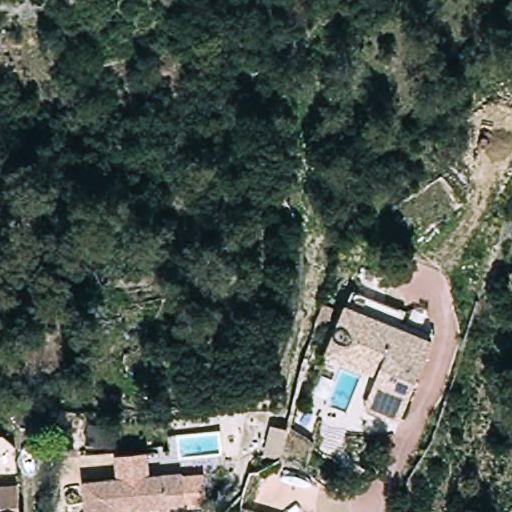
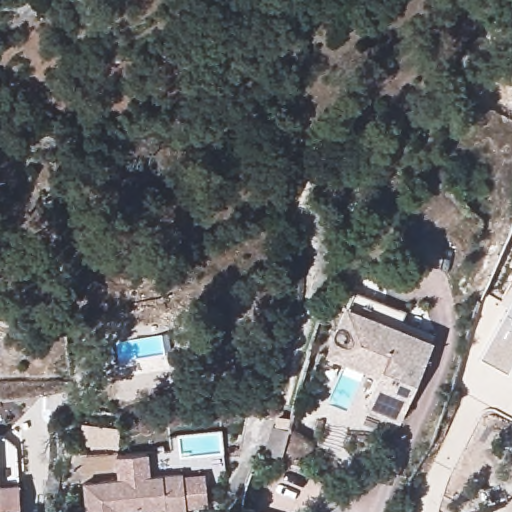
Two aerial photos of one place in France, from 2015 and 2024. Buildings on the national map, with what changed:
new [(508,375),(480,360),(512,298),(512,367),(508,375)]
unchanged [(377,376),(325,355),(346,303),(433,340),(401,423),(365,407),(377,376)]
unchanged [(116,477),(114,457),(146,452),(151,474),(116,477)]
unchanged [(183,471),(186,512),(164,512),(163,508),(126,512),(86,512),(83,481),(183,471)]
unchanged [(202,472),(206,506),(186,508),(183,475),(202,472)]
unchanged [(14,512),(0,512),(0,484),(14,484),(14,512)]

